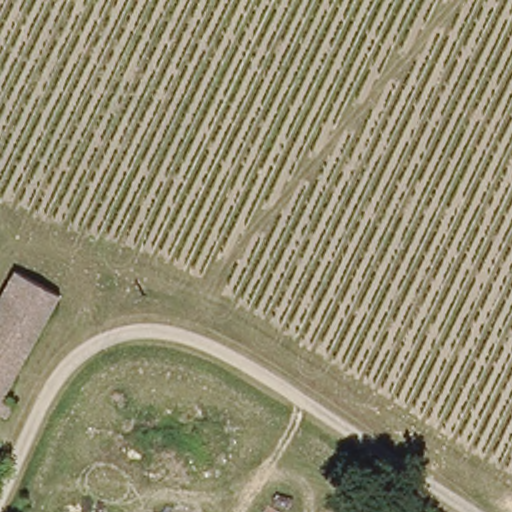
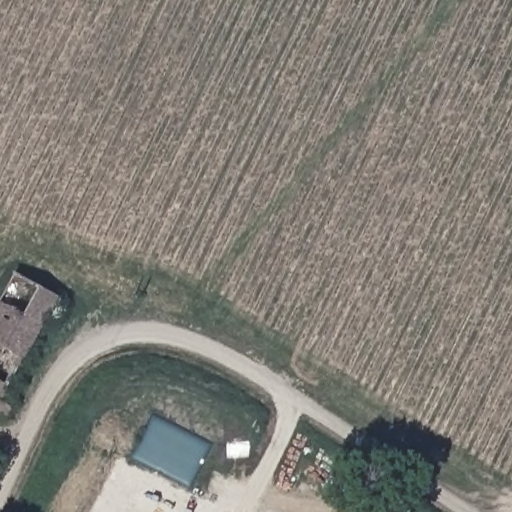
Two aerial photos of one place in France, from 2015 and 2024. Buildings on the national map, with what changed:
unchanged [(0,279),(1,276),(47,293),(11,388),(22,392),(9,416),(0,413),(0,279)]

